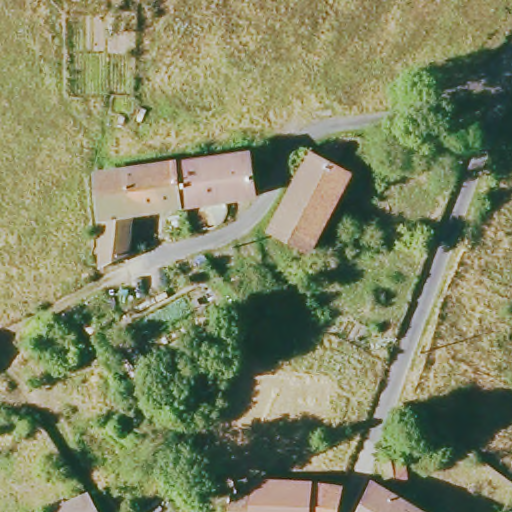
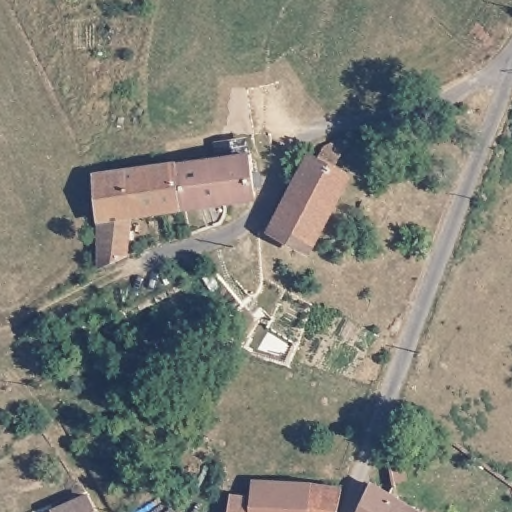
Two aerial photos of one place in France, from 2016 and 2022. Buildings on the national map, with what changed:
unchanged [(319,154),(358,178),(318,250),(278,228),(319,154)]
unchanged [(200,209),(194,209),(185,163),(259,156),(261,195),(200,209)]
unchanged [(194,209),(140,215),(105,220),(103,172),(185,163),(194,209)]
unchanged [(140,215),(141,231),(139,237),(130,250),(108,262),(105,220),(140,215)]
unchanged [(236,512),(238,498),(259,496),(259,483),(344,490),(339,512),(236,512)]
unchanged [(406,512),(372,512),(380,498),(406,512)]
unchanged [(102,512),(83,512),(98,504),(102,512)]

